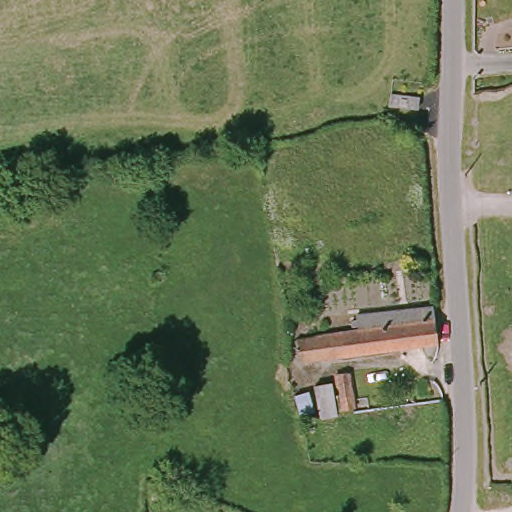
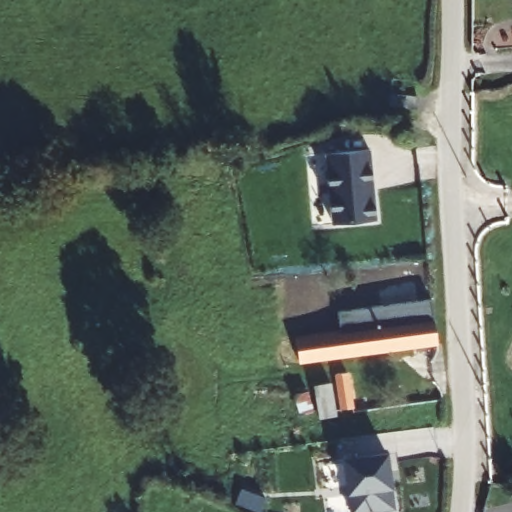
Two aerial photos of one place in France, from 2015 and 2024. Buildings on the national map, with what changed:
unchanged [(419,95),(419,109),(396,109),(396,95),(419,95)]
new [(327,165),(325,165),(326,153),(371,149),(377,204),(374,204),(374,220),(333,224),(327,165)]
unchanged [(366,326),(364,317),(423,307),(424,316),(441,313),(444,338),(306,362),(303,336),(366,326)]
unchanged [(332,381),(334,394),(339,393),(336,373),(349,371),(354,407),(319,413),(314,384),(332,381)]
new [(389,452),(396,510),(378,512),(351,512),(345,458),(389,452)]

